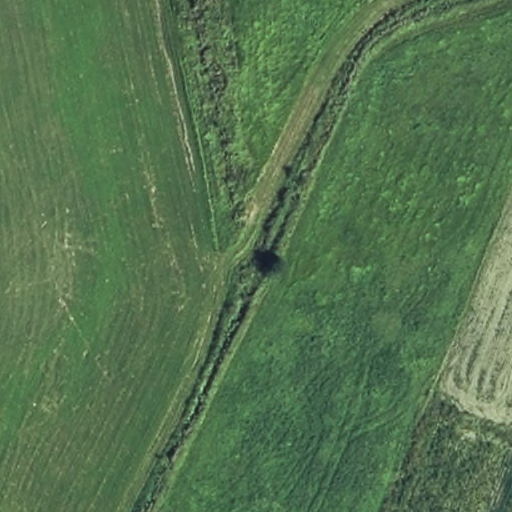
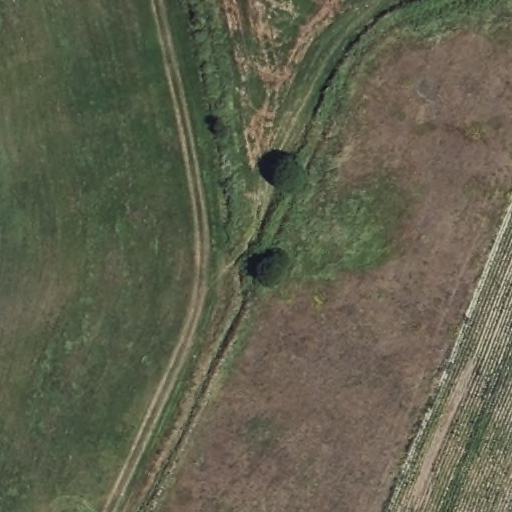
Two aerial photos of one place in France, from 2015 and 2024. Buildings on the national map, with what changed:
[]

